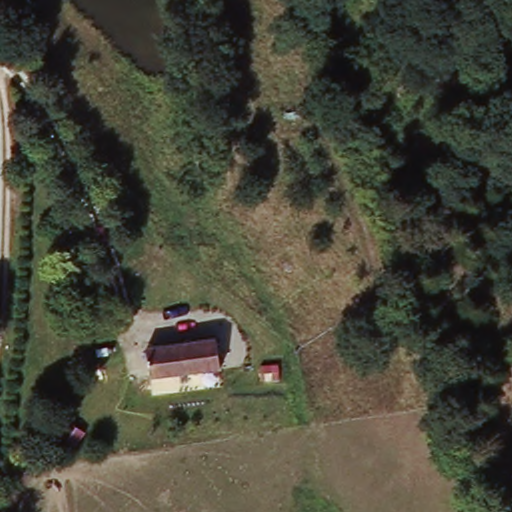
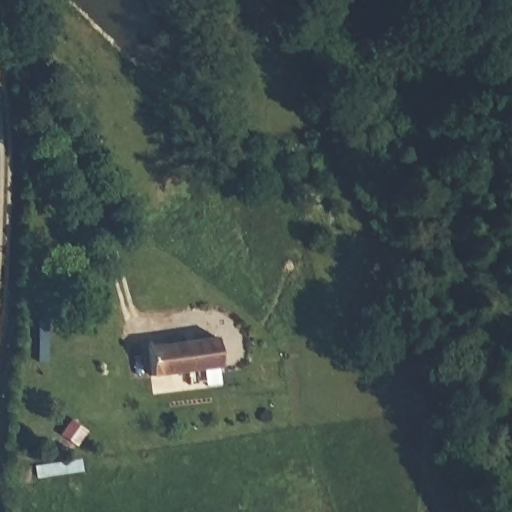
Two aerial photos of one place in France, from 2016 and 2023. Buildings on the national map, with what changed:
unchanged [(151,377),(149,345),(214,339),(216,367),(216,373),(151,377)]

